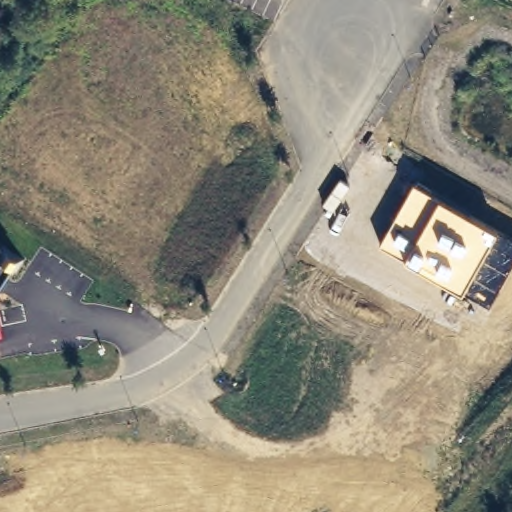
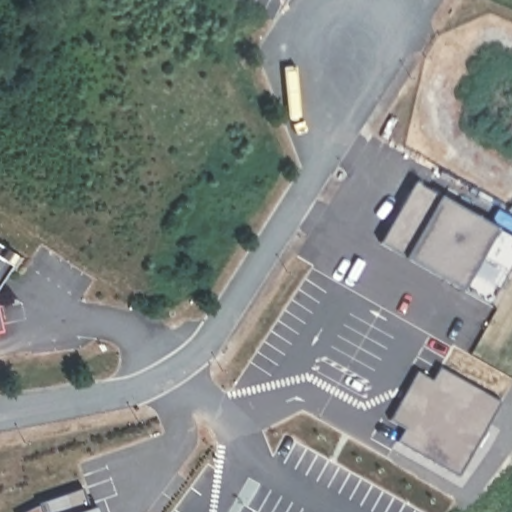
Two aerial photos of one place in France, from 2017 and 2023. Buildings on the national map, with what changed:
unchanged [(490,303),(462,288),(406,258),(380,241),(415,180),(440,195),(500,229),(512,236),(512,262),(490,303)]
unchanged [(0,256),(13,264),(0,285),(0,256)]
unchanged [(0,332),(0,322),(1,332),(0,332)]
new [(398,441),(406,428),(391,420),(418,373),(433,381),(441,368),(500,401),(458,476),(398,441)]
new [(40,504),(84,491),(90,509),(97,507),(99,512),(27,512),(40,504)]

